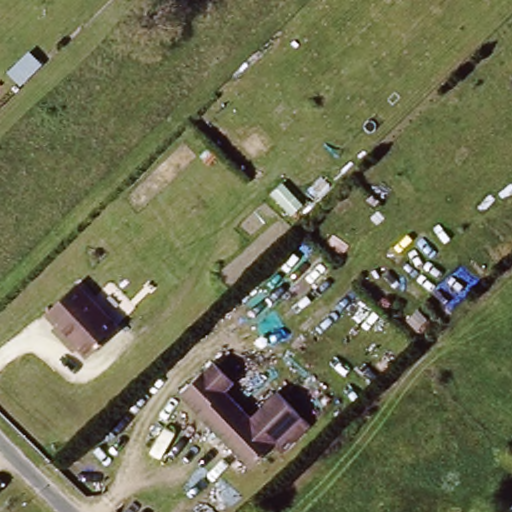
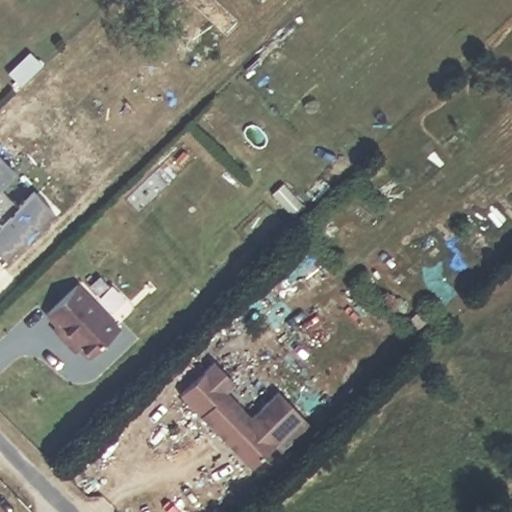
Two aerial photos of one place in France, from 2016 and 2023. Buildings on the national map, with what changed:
new [(2,190),(20,209),(37,194),(56,214),(7,262),(0,255),(0,228),(3,225),(0,222),(0,156),(18,175),(2,190)]
unchanged [(84,354),(46,312),(80,280),(117,320),(84,354)]
unchanged [(287,446),(275,434),(247,464),(181,390),(214,356),(237,381),(229,389),(249,412),(275,387),(310,418),(287,446)]

